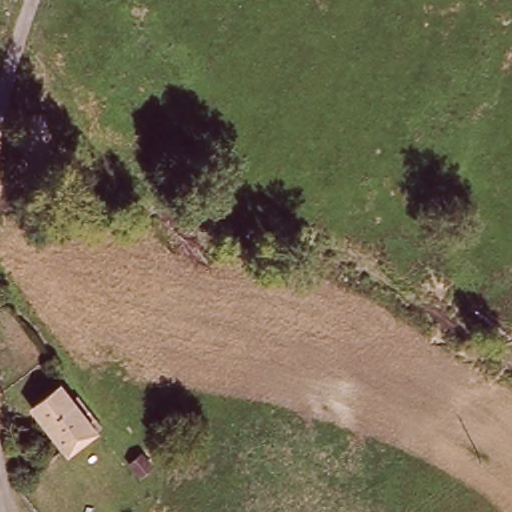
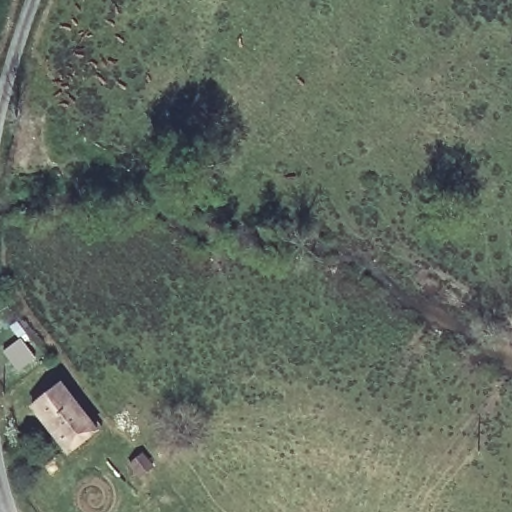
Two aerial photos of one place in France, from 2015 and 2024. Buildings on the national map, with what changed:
unchanged [(33,406),(60,385),(97,431),(70,452),(33,406)]
unchanged [(144,452),(154,465),(141,475),(131,462),(144,452)]

